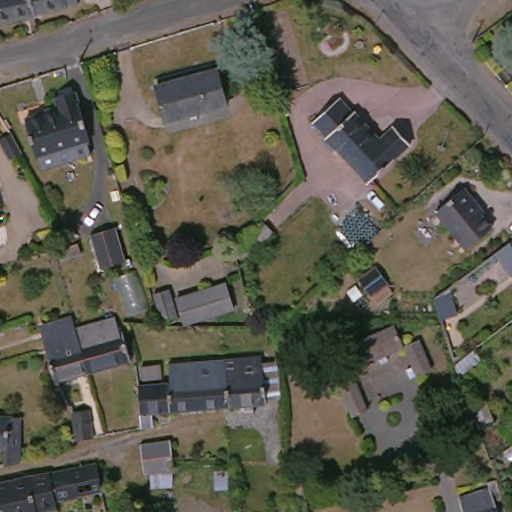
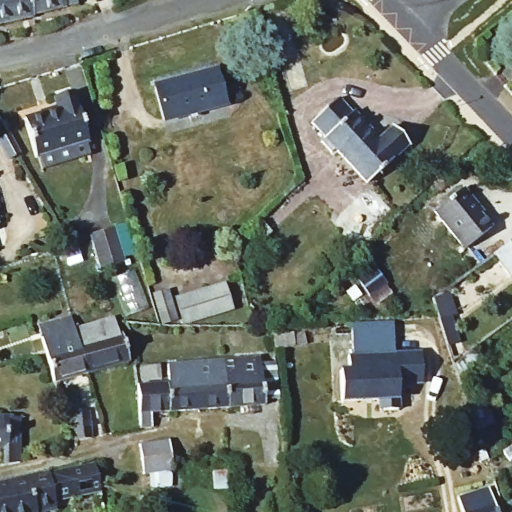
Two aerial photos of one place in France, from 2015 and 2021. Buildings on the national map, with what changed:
unchanged [(32,26),(0,33),(0,0),(72,0),(74,11),(72,12),(67,13),(68,16),(37,22),(31,24),(32,26)]
unchanged [(155,92),(177,87),(219,76),(228,112),(186,122),(162,128),(155,92)]
unchanged [(29,168),(19,126),(52,117),(50,105),(69,100),(84,154),(29,168)]
unchanged [(310,152),(315,147),(303,133),(332,110),(345,126),(350,122),(358,132),(328,159),(322,164),(310,152)]
unchanged [(385,136),(401,153),(357,192),(328,159),(358,132),(371,147),(385,136)]
unchanged [(466,202),(464,205),(485,229),(460,250),(430,214),(456,192),(466,202)]
unchanged [(97,275),(86,243),(106,236),(117,268),(97,275)]
unchanged [(489,258),(499,251),(512,240),(512,279),(508,282),(489,258)]
unchanged [(190,330),(181,305),(227,287),(237,313),(190,330)]
unchanged [(175,296),(182,323),(166,327),(159,299),(175,296)]
unchanged [(126,367),(81,381),(52,390),(42,362),(31,327),(64,317),(69,333),(102,323),(109,342),(117,340),(126,367)]
new [(394,322),(396,352),(420,352),(422,388),(400,383),(400,400),(401,410),(379,411),(378,402),(343,403),(340,370),(350,369),(348,353),(355,353),(353,323),(394,322)]
demolished [(448,333),(457,353),(441,366),(432,340),(448,333)]
demolished [(389,356),(345,376),(336,355),(380,336),(389,356)]
demolished [(417,397),(397,357),(415,348),(435,389),(417,397)]
unchanged [(275,411),(257,411),(257,412),(221,415),(220,411),(214,367),(220,364),(255,365),(255,371),(267,371),(275,411)]
unchanged [(154,391),(159,390),(163,391),(163,368),(214,367),(220,411),(221,415),(160,420),(154,421),(154,431),(135,432),(132,392),(134,392),(154,391)]
demolished [(367,420),(348,428),(327,385),(347,376),(367,420)]
unchanged [(77,412),(77,444),(60,449),(60,412),(77,412)]
unchanged [(4,428),(5,432),(20,432),(22,464),(2,470),(2,453),(0,453),(0,429),(4,428)]
unchanged [(500,442),(512,433),(512,457),(511,457),(500,442)]
unchanged [(165,442),(167,496),(146,498),(145,481),(137,482),(135,447),(165,442)]
unchanged [(64,496),(46,500),(47,507),(25,511),(25,512),(0,512),(0,486),(41,477),(59,472),(64,496)]
unchanged [(306,512),(282,512),(286,477),(307,478),(306,512)]
unchanged [(461,512),(457,500),(466,498),(482,493),(489,512),(461,512)]

